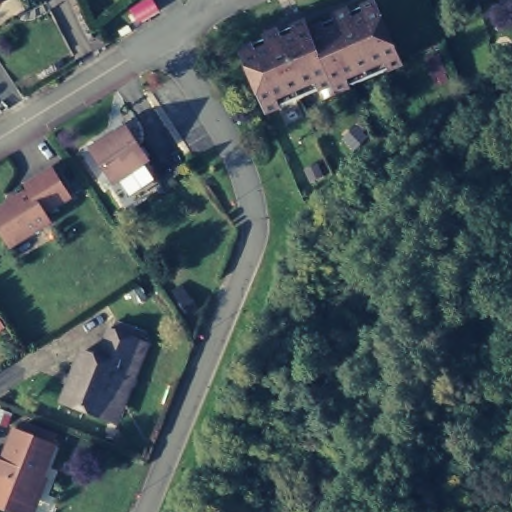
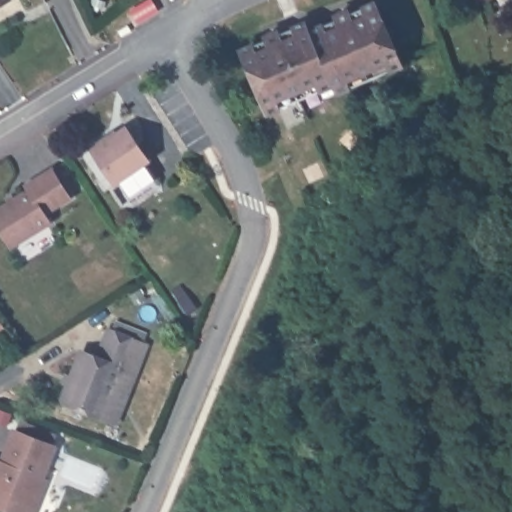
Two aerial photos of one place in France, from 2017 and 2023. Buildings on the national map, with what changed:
unchanged [(0,0),(12,0),(0,7),(0,0)]
unchanged [(385,60),(387,66),(346,84),(344,78),(331,84),(327,75),(315,81),(317,86),(277,104),(274,98),(261,104),(238,50),(250,45),(250,42),(262,36),(265,38),(277,33),(277,30),(290,24),(292,26),(305,21),(308,30),(320,24),(320,21),(333,16),(335,18),(347,13),(347,10),(360,4),(362,6),(375,1),(397,55),(385,60)]
unchanged [(150,162),(117,185),(95,152),(128,129),(150,162)]
unchanged [(47,210),(52,219),(14,243),(0,222),(0,206),(31,187),(29,183),(55,166),(72,194),(47,210)]
unchanged [(137,289),(145,299),(134,305),(127,295),(137,289)]
unchanged [(100,418),(60,403),(80,354),(95,360),(106,332),(110,333),(115,323),(144,335),(140,345),(144,347),(131,379),(114,424),(100,418)]
unchanged [(25,405),(20,417),(7,413),(11,401),(25,405)]
unchanged [(43,511),(27,505),(0,494),(0,446),(15,453),(27,422),(30,424),(35,414),(67,427),(64,436),(67,438),(55,470),(58,471),(47,499),(43,511)]

